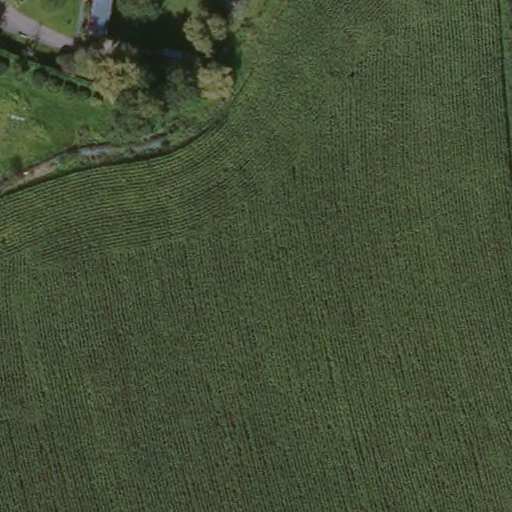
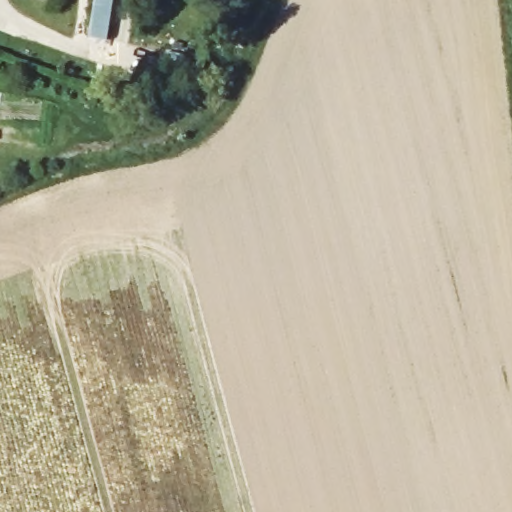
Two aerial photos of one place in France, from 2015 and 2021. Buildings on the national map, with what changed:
unchanged [(93,0),(111,0),(106,37),(88,35),(93,0)]

